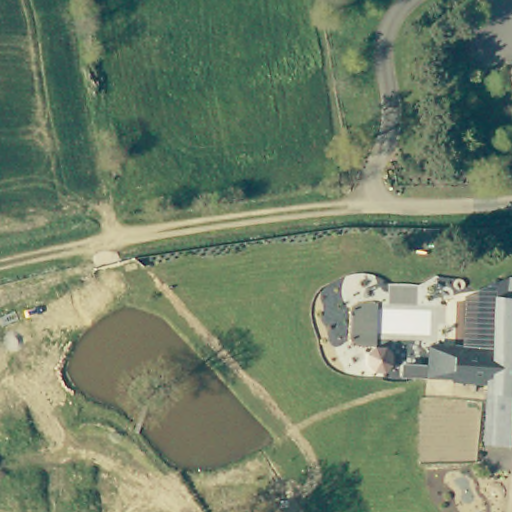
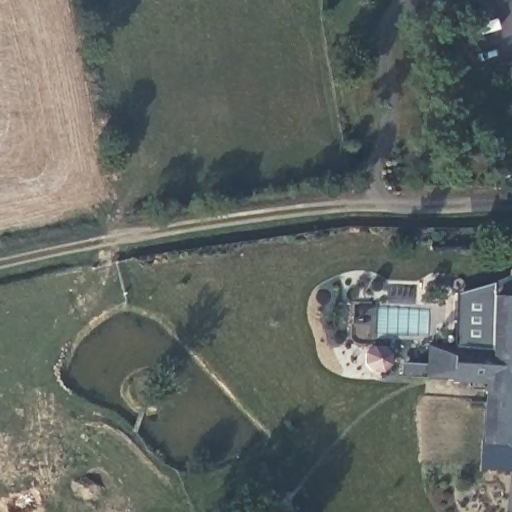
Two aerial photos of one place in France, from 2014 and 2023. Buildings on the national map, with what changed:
unchanged [(498,171),(504,167),(511,167),(512,168),(512,183),(510,183),(500,184),(498,171)]
unchanged [(491,382),(438,378),(441,343),(492,347),(495,293),(512,294),(512,391),(490,390),(491,382)]
unchanged [(512,391),(512,441),(488,440),(490,390),(512,391)]

